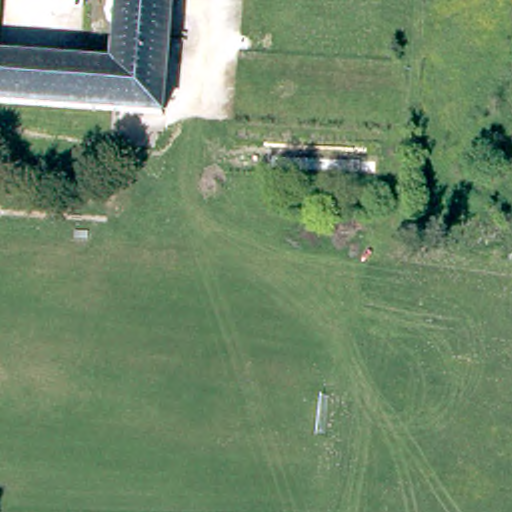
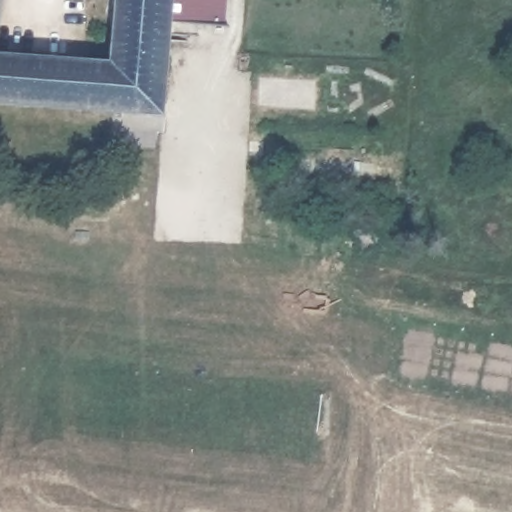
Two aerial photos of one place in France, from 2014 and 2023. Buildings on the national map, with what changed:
unchanged [(0,0),(1,0),(0,17),(0,0)]
unchanged [(162,110),(82,105),(0,100),(0,54),(117,62),(122,0),(172,0),(169,39),(162,110)]
new [(170,21),(172,0),(228,0),(226,26),(170,21)]

